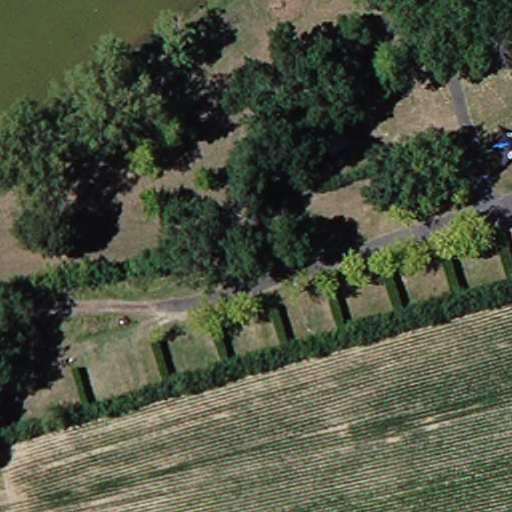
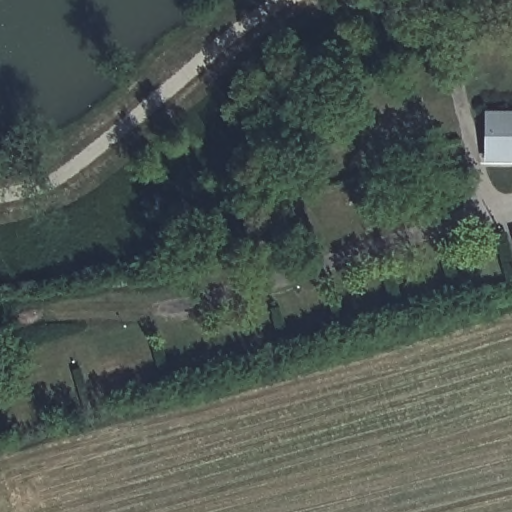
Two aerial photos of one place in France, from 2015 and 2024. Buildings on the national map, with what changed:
new [(512,162),(483,163),(485,111),(512,111),(512,162)]

